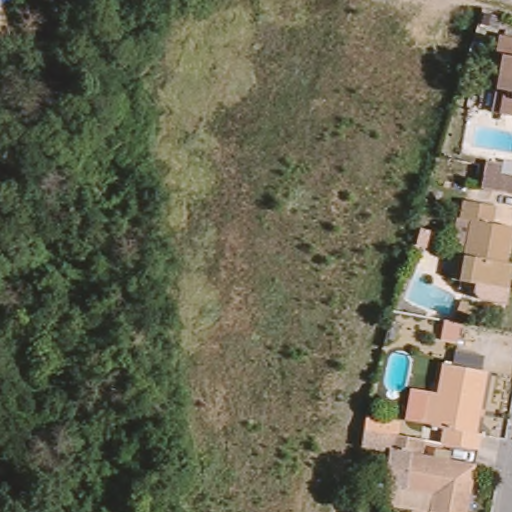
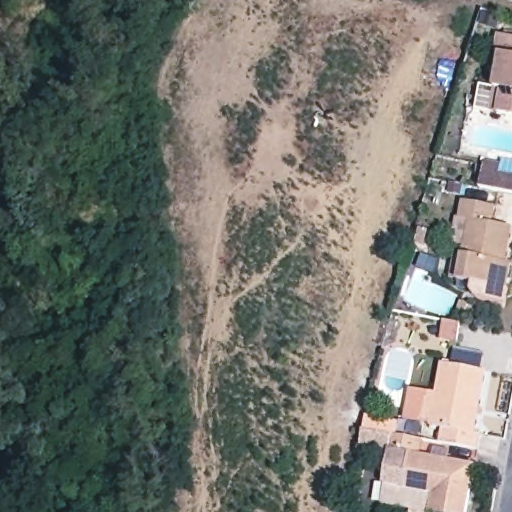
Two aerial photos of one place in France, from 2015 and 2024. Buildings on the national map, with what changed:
unchanged [(496,90),(501,57),(495,55),(499,35),(512,38),(512,117),(498,115),(491,114),(496,90)]
unchanged [(500,167),(498,176),(512,178),(512,195),(479,189),(483,164),(500,167)]
unchanged [(505,303),(478,298),(473,291),(474,282),(459,280),(450,278),(456,252),(464,254),(469,219),(459,217),(463,199),(494,205),(491,223),(512,227),(505,262),(512,263),(508,287),(505,303)]
unchanged [(429,421),(430,417),(422,415),(427,385),(436,387),(442,357),(485,365),(474,428),(478,430),(475,446),(439,439),(442,422),(429,421)]
unchanged [(389,485),(407,488),(413,455),(395,451),(397,436),(426,441),(423,456),(478,466),(470,512),(433,512),(386,502),(389,485)]

